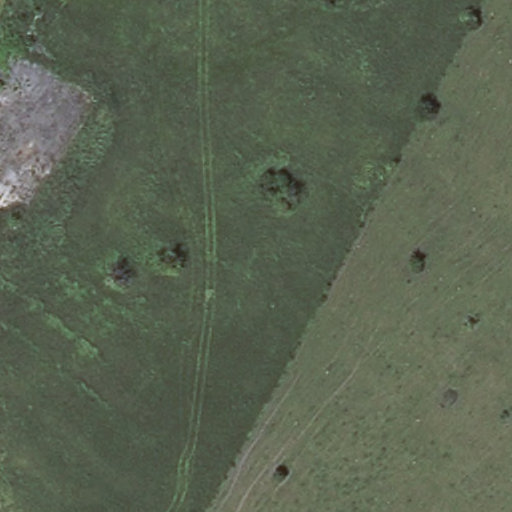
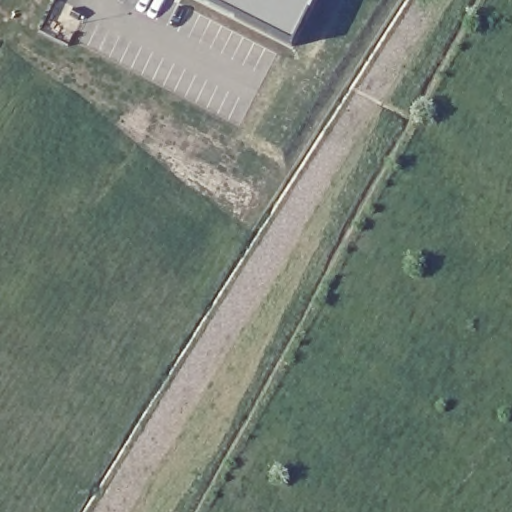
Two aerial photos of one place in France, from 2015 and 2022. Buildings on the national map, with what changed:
new [(292,44),(201,0),(315,0),(292,44)]

